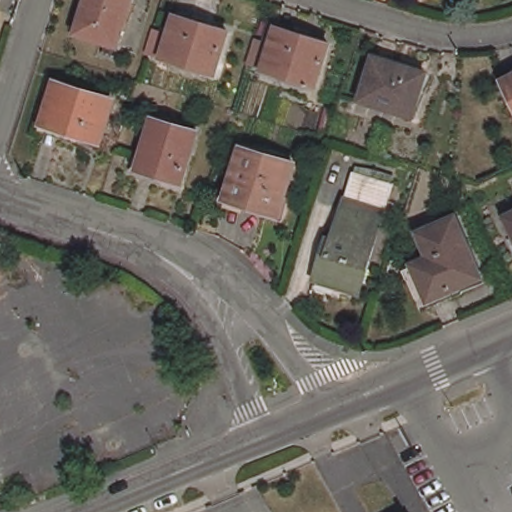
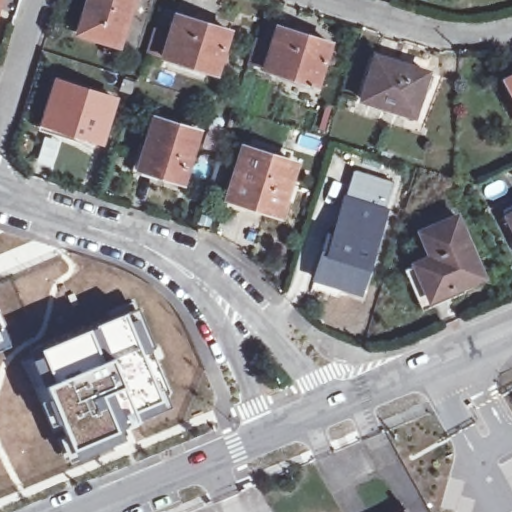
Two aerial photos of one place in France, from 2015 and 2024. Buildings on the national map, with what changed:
unchanged [(87,0),(132,0),(118,44),(77,31),(87,0)]
unchanged [(209,28),(210,21),(227,28),(215,67),(162,51),(173,17),(209,28)]
unchanged [(316,39),(318,34),(333,39),(320,80),(269,63),(281,26),(316,39)]
unchanged [(365,92),(377,51),(429,68),(415,109),(365,92)]
unchanged [(46,119),(59,79),(112,96),(100,136),(79,129),(76,136),(60,131),(43,127),(46,119)]
unchanged [(512,94),(506,82),(512,79),(512,94)]
unchanged [(197,131),(182,182),(163,177),(165,170),(141,163),(155,119),(197,131)]
unchanged [(226,195),(241,148),(295,165),(280,212),(226,195)]
unchanged [(341,294),(343,287),(316,279),(321,260),(326,262),(352,175),(392,188),(359,298),(341,294)]
unchanged [(512,212),(512,223),(508,214),(512,212)]
unchanged [(422,305),(404,265),(408,263),(432,253),(421,228),(452,214),(480,270),(452,283),(455,290),(422,305)]
new [(86,327),(123,310),(160,397),(131,406),(135,420),(114,428),(71,446),(43,384),(54,379),(40,348),(86,327)]
new [(8,340),(0,344),(0,321),(8,340)]

